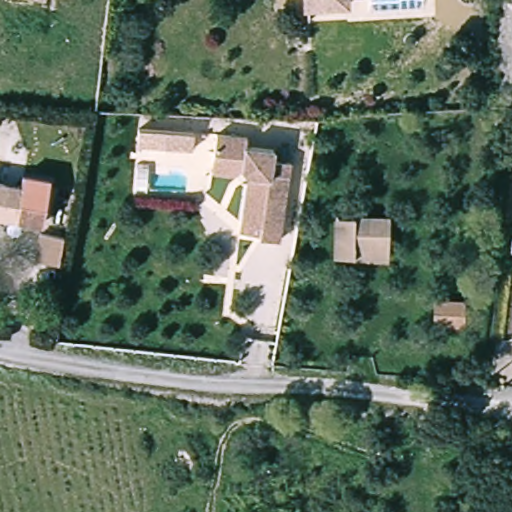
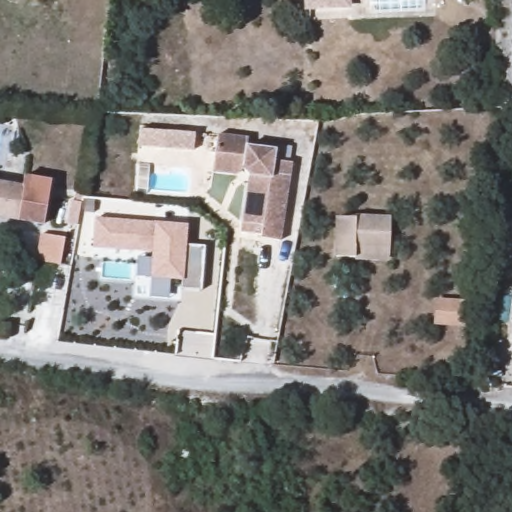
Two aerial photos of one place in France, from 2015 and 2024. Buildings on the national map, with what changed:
unchanged [(39,0),(53,0),(52,1),(39,0)]
unchanged [(312,9),(312,0),(351,0),(351,8),(342,8),(312,9)]
unchanged [(206,151),(196,150),(178,149),(151,147),(152,130),(179,132),(197,133),(207,134),(206,151)]
unchanged [(259,141),(257,149),(285,154),(284,164),(302,168),(290,234),(288,245),(269,242),(271,230),(251,227),(260,179),(252,172),(245,177),(222,173),(224,162),(228,135),(259,141)]
unchanged [(15,187),(20,173),(53,177),(40,225),(0,220),(0,183),(15,187)]
new [(93,249),(95,219),(187,227),(185,247),(203,248),(201,291),(181,289),(181,280),(150,278),(151,252),(93,249)]
unchanged [(356,261),(337,261),(335,220),(388,219),(387,247),(387,262),(356,261)]
unchanged [(59,264),(35,260),(39,233),(65,237),(59,264)]
unchanged [(460,300),(458,323),(431,320),(433,298),(460,300)]

